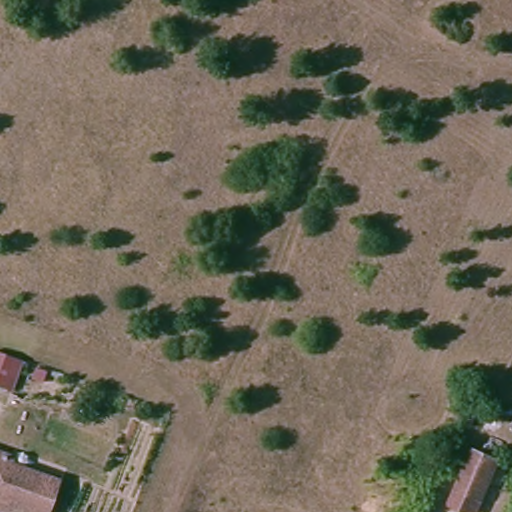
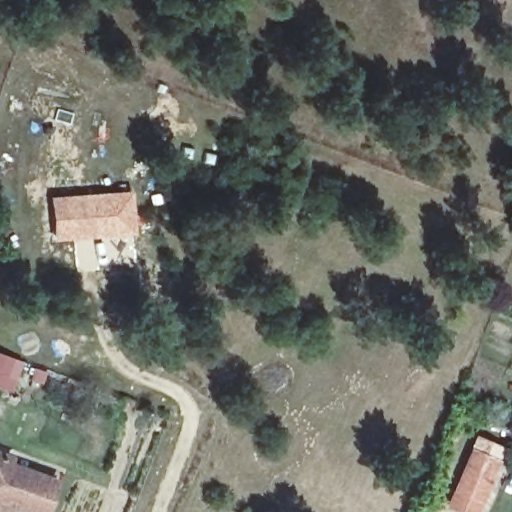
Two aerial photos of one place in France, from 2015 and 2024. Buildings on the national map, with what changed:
new [(77,272),(73,240),(53,242),(48,196),(131,190),(134,235),(93,239),(98,270),(77,272)]
new [(12,393),(5,390),(0,388),(0,353),(17,361),(24,364),(12,393)]
demolished [(1,410),(0,409),(0,375),(14,380),(1,410)]
unchanged [(475,512),(452,502),(475,446),(500,455),(477,512),(475,512)]
unchanged [(69,485),(61,507),(59,512),(38,512),(16,504),(14,510),(0,505),(0,447),(25,456),(21,467),(69,485)]

